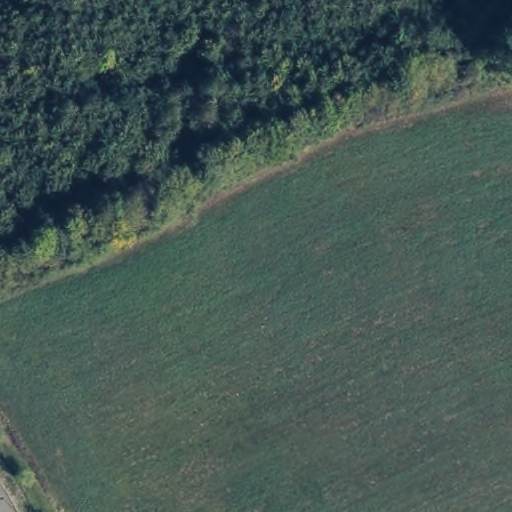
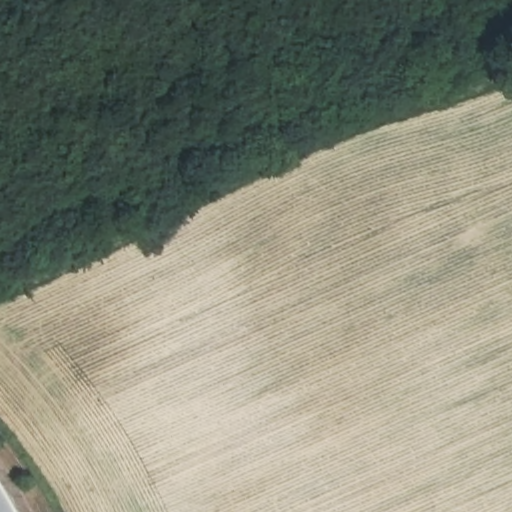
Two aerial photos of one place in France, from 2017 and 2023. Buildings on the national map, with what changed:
[]

